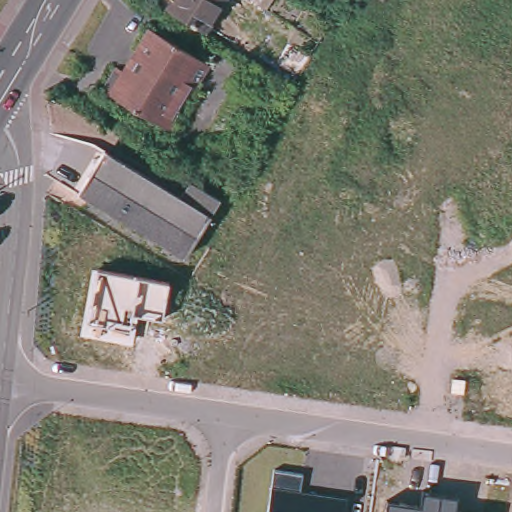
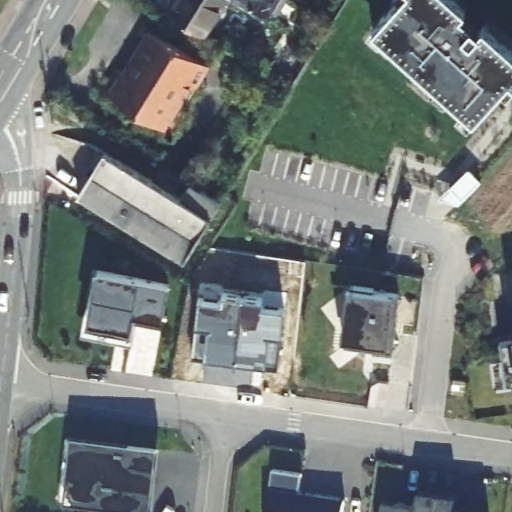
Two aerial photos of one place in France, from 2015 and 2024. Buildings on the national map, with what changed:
unchanged [(212,0),(193,30),(157,6),(161,0),(212,0)]
unchanged [(240,0),(252,0),(248,5),(240,0)]
new [(396,0),(457,0),(465,7),(461,12),(480,27),(483,24),(512,49),(512,79),(509,76),(473,116),(373,26),(396,0)]
unchanged [(98,85),(116,56),(122,60),(145,24),(203,60),(162,127),(98,85)]
unchanged [(74,196),(105,150),(177,198),(188,182),(220,202),(182,262),(74,196)]
unchanged [(161,319),(140,315),(135,342),(82,332),(92,266),(169,280),(161,319)]
new [(348,285),(392,290),(400,290),(393,346),(347,342),(342,336),(348,285)]
new [(193,353),(195,322),(198,296),(222,300),(223,292),(262,297),(260,306),(283,307),(278,365),(205,356),(193,353)]
new [(512,334),(512,381),(503,382),(497,335),(512,334)]
new [(70,442),(130,448),(130,444),(155,446),(148,511),(95,505),(95,500),(64,497),(70,442)]
unchanged [(302,473),(300,490),(347,497),(345,512),(268,512),(274,470),(302,473)]
unchanged [(420,505),(423,492),(457,496),(455,512),(384,512),(386,500),(420,505)]

